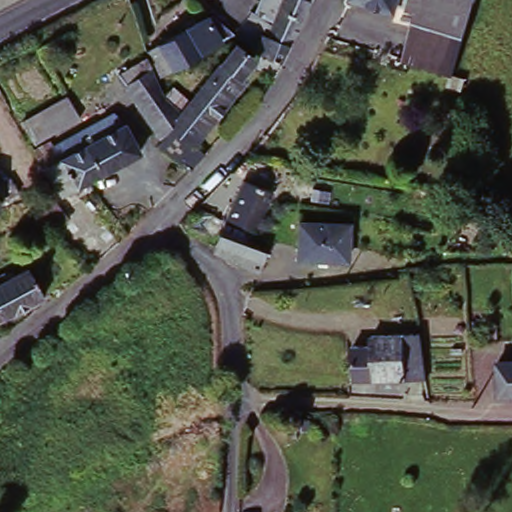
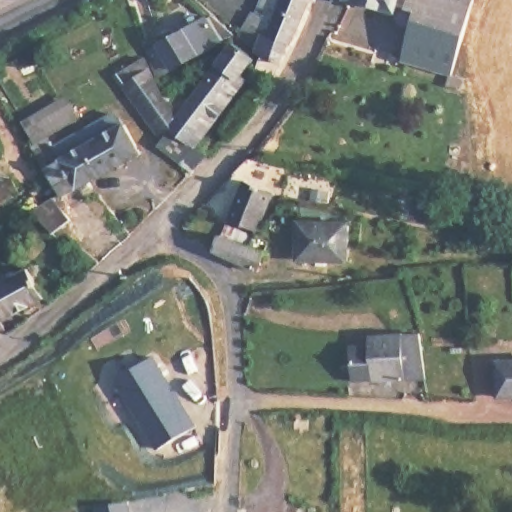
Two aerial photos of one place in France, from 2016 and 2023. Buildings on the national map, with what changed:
unchanged [(262,63),(265,59),(259,57),(260,54),(242,39),(235,32),(255,10),(257,14),(266,0),(305,0),(313,5),(293,49),(284,66),(277,78),(260,71),(262,63)]
unchanged [(450,74),(460,77),(458,87),(445,84),(447,75),(403,61),(405,59),(417,10),(394,4),(392,10),(358,0),(471,0),(450,74)]
unchanged [(152,55),(209,20),(224,44),(163,79),(152,55)]
unchanged [(185,165),(185,166),(162,149),(167,141),(130,87),(127,84),(121,75),(150,57),(154,71),(157,82),(165,104),(184,119),(237,50),(257,64),(193,147),(212,159),(197,175),(185,165)]
unchanged [(66,99),(79,117),(32,143),(18,125),(66,99)]
unchanged [(85,126),(94,140),(50,166),(46,160),(42,153),(74,132),(85,126)]
unchanged [(49,220),(51,218),(49,212),(62,204),(46,176),(61,168),(60,167),(65,164),(70,170),(127,135),(136,149),(140,146),(155,175),(112,200),(101,206),(90,212),(89,212),(72,221),(71,219),(66,221),(84,241),(65,255),(64,255),(44,235),(54,229),(49,220)]
unchanged [(267,179),(261,194),(232,181),(242,170),(267,179)]
unchanged [(436,200),(435,200),(431,200),(433,187),(444,190),(442,201),(436,200)]
unchanged [(270,204),(255,240),(227,228),(243,189),(271,201),(270,204)]
unchanged [(1,207),(0,207),(0,206),(1,207)]
unchanged [(349,227),(346,264),(298,260),(301,222),(349,227)]
unchanged [(212,250),(220,234),(248,245),(262,250),(256,270),(238,262),(212,250)]
unchanged [(32,267),(47,295),(2,320),(0,315),(0,284),(32,267)]
unchanged [(373,347),(373,337),(420,337),(423,337),(423,360),(423,362),(355,364),(355,347),(373,347)]
unchanged [(499,358),(512,358),(512,394),(500,395),(499,358)]
new [(189,422),(156,443),(117,376),(152,359),(189,422)]
unchanged [(423,362),(424,383),(356,385),(355,364),(423,362)]
new [(127,501),(129,512),(97,512),(96,507),(127,501)]

